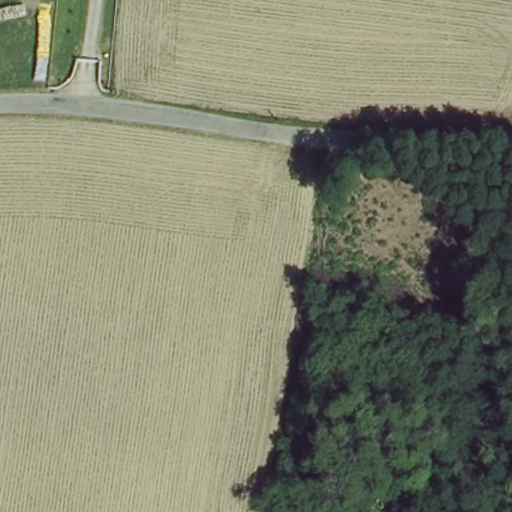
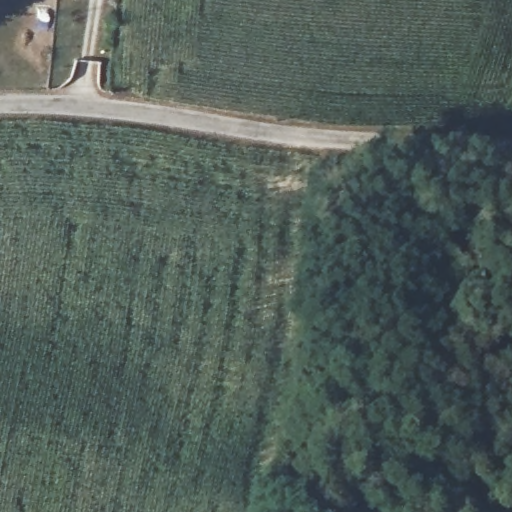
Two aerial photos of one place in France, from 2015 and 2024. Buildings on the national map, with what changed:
[]

